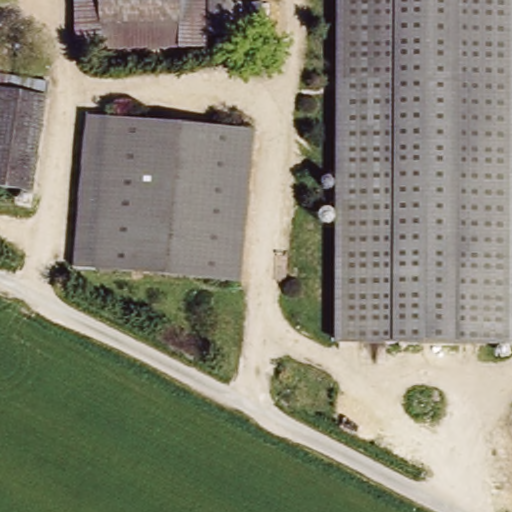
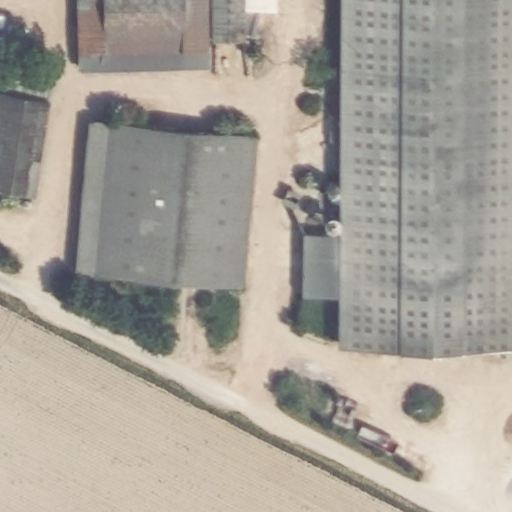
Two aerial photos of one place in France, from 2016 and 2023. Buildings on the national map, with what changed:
unchanged [(78,57),(77,0),(205,0),(205,57),(172,59),(78,57)]
unchanged [(213,26),(213,0),(243,0),(243,26),(213,26)]
unchanged [(512,0),(512,343),(337,344),(337,343),(339,0),(512,0)]
unchanged [(32,164),(30,182),(0,178),(0,88),(40,93),(32,164)]
unchanged [(254,269),(103,273),(105,125),(253,125),(254,269)]

